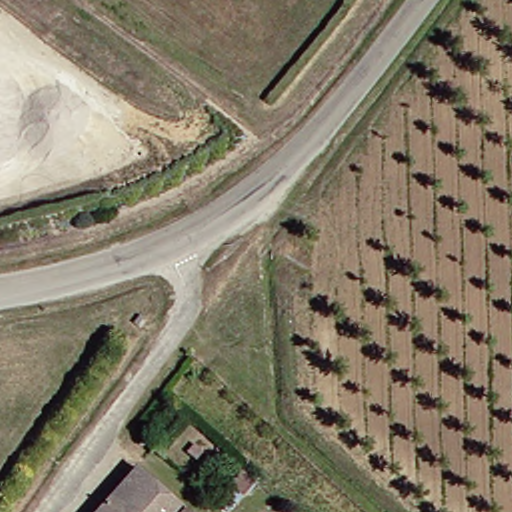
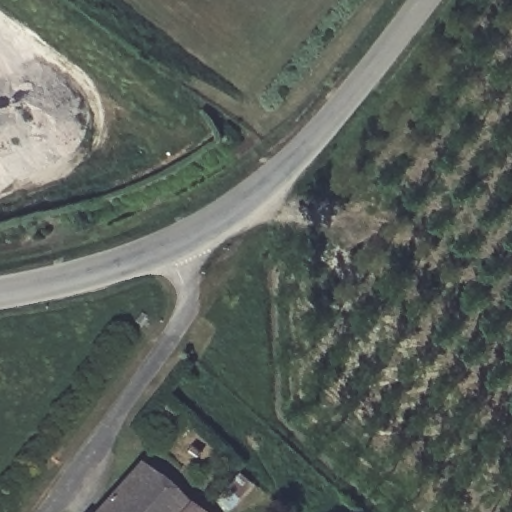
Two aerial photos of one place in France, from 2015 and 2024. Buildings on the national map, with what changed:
unchanged [(127,463),(177,512),(86,512),(127,463)]
unchanged [(245,479),(220,508),(207,498),(232,468),(245,479)]

